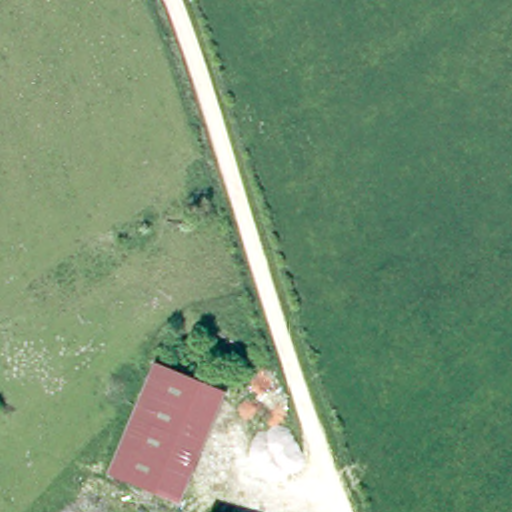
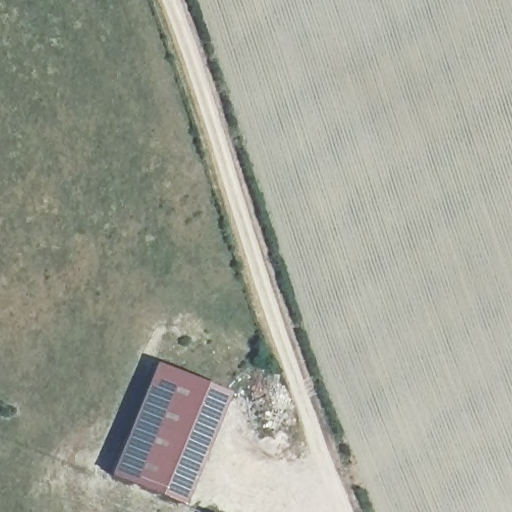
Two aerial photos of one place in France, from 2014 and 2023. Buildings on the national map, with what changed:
unchanged [(161,359),(228,387),(184,500),(115,470),(161,359)]

